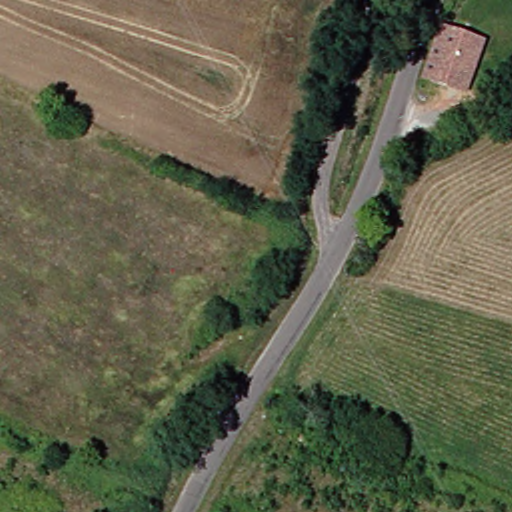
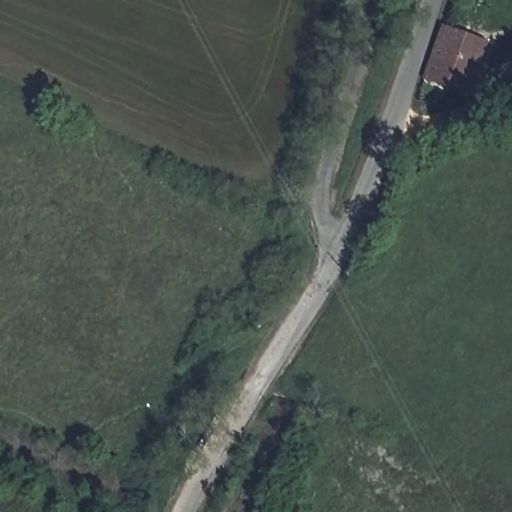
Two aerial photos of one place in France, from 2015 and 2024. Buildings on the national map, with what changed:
unchanged [(416,79),(433,28),(459,35),(478,41),(470,60),(459,92),(416,79)]

